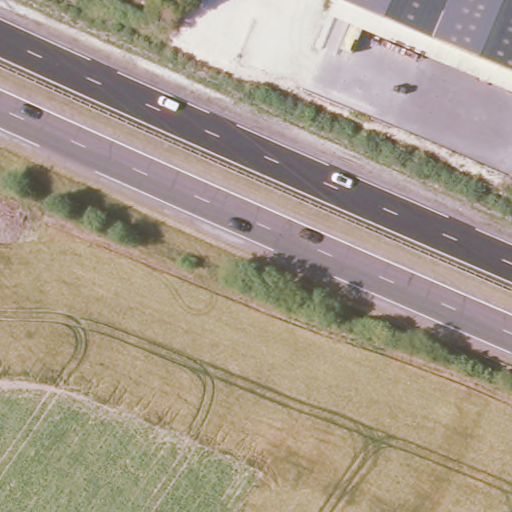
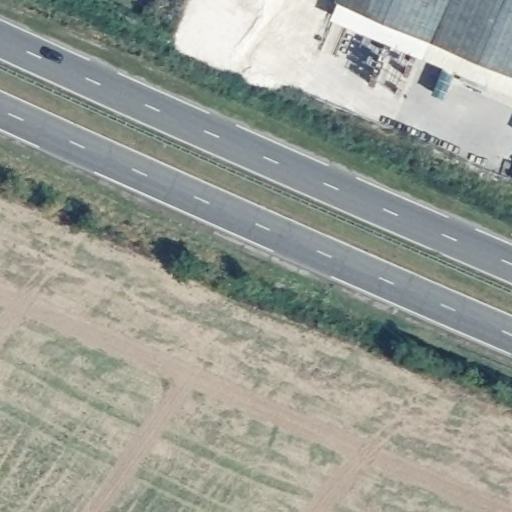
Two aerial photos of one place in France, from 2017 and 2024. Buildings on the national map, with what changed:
unchanged [(335,0),(451,0),(434,42),(335,0)]
unchanged [(451,0),(512,0),(512,75),(434,42),(451,0)]
unchanged [(512,75),(512,92),(428,56),(434,42),(512,75)]

